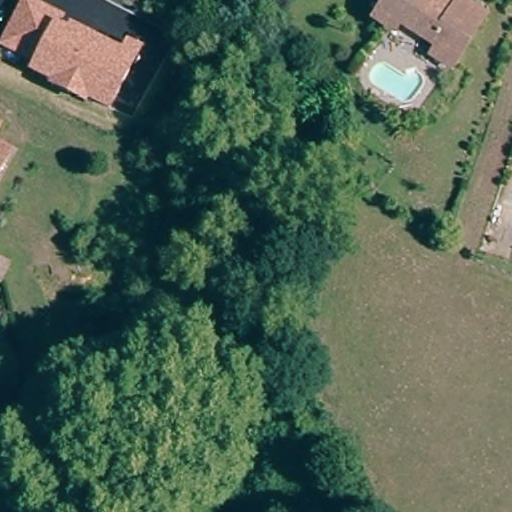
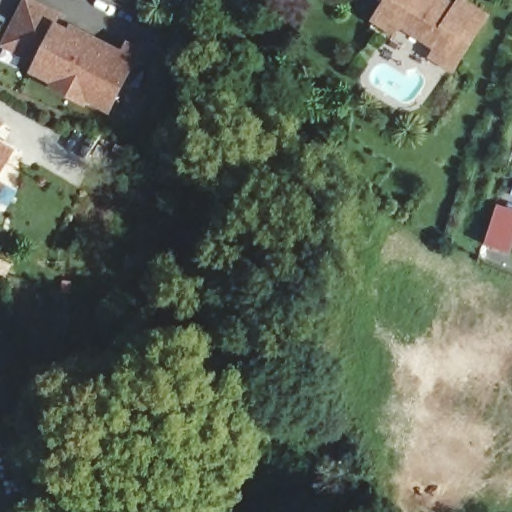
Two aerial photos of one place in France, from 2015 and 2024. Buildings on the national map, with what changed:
unchanged [(0,48),(0,44),(20,0),(35,0),(71,17),(68,22),(122,48),(127,39),(143,48),(111,113),(88,102),(85,107),(47,88),(49,83),(29,73),(32,64),(0,48)]
unchanged [(392,28),(372,14),(382,0),(449,0),(450,0),(468,0),(485,10),(452,63),(424,47),(418,53),(389,33),(392,28)]
unchanged [(0,178),(0,142),(15,150),(0,178)]
new [(496,212),(512,217),(512,246),(508,259),(483,253),(496,212)]
unchanged [(0,286),(0,264),(2,258),(19,266),(10,290),(0,286)]

